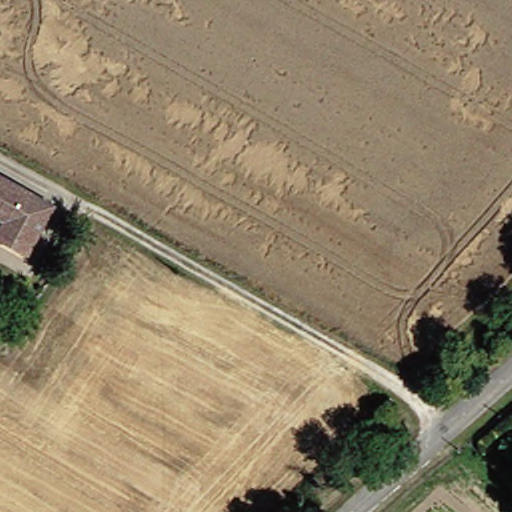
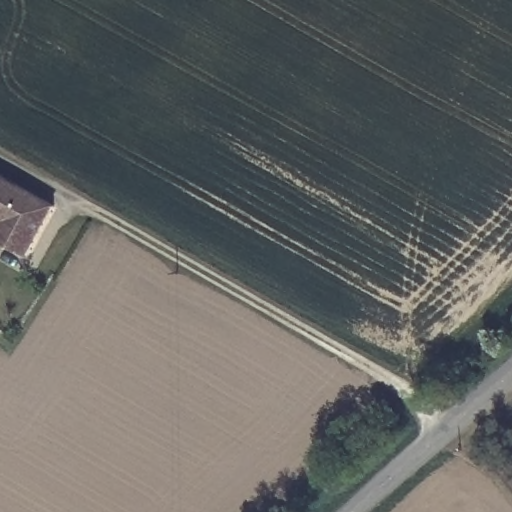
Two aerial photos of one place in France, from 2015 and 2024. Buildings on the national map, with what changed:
unchanged [(21,260),(0,248),(0,226),(1,223),(0,222),(0,181),(50,209),(21,260)]

